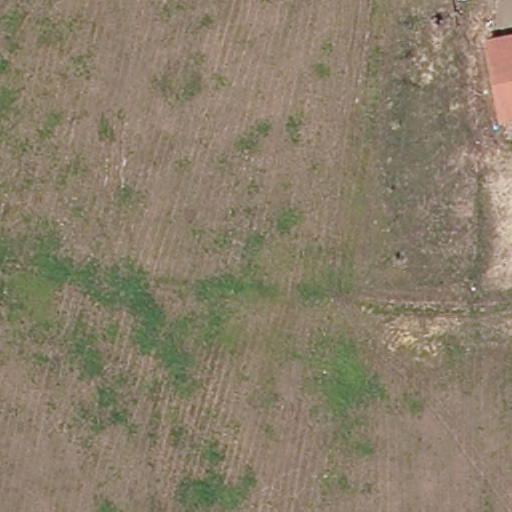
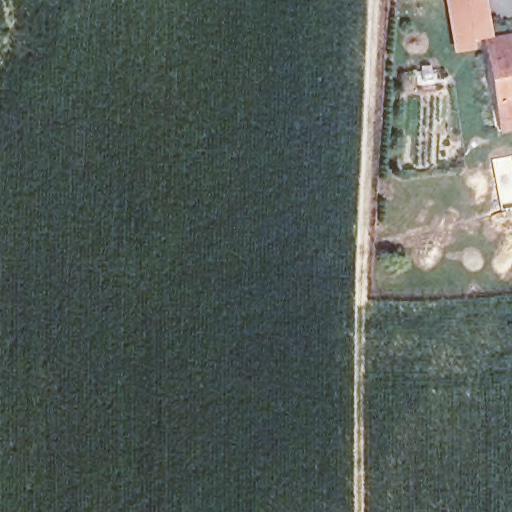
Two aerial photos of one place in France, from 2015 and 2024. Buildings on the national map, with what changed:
new [(475,48),(455,52),(446,0),(486,0),(492,34),(473,38),(475,48)]
unchanged [(492,37),(512,33),(512,95),(502,97),(492,37)]
new [(507,132),(502,97),(512,95),(512,130),(507,132)]

